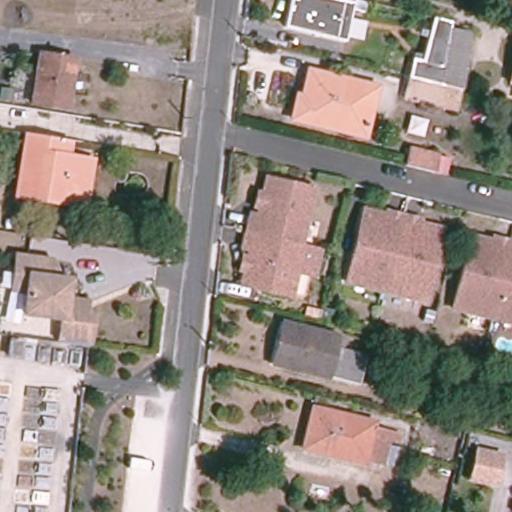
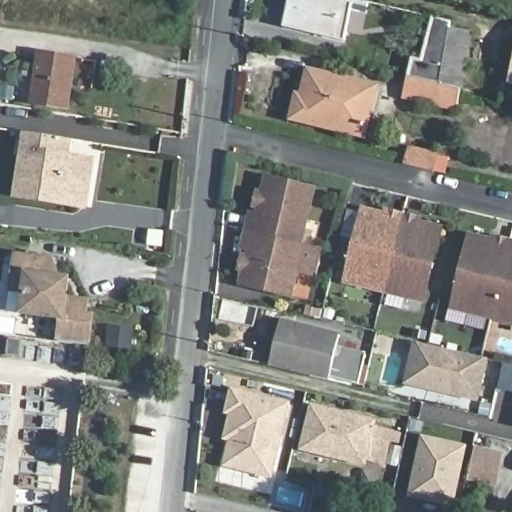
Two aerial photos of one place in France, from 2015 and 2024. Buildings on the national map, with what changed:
unchanged [(335,39),(281,26),(287,0),(339,0),(343,1),(355,4),(353,16),(340,13),(337,29),(349,32),(347,42),(335,39)]
unchanged [(462,89),(409,76),(413,58),(424,61),(435,17),(453,22),(452,29),(472,32),(462,89)]
unchanged [(40,52),(78,57),(70,110),(32,105),(40,52)]
unchanged [(363,85),(358,105),(371,108),(365,134),(296,117),(300,97),(305,99),(312,72),(363,85)]
unchanged [(457,108),(404,95),(409,76),(462,89),(457,108)]
unchanged [(36,136),(47,137),(69,141),(66,157),(92,161),(85,205),(18,195),(28,134),(36,136)]
unchanged [(411,149),(440,156),(436,172),(407,165),(411,149)]
unchanged [(253,214),(261,215),(263,207),(258,206),(262,192),(266,194),(270,177),(316,189),(303,243),(297,242),(249,230),(251,222),(253,214)]
unchanged [(381,290),(342,281),(360,209),(377,213),(382,215),(383,211),(399,215),(387,265),(381,290)]
unchanged [(420,300),(381,290),(387,265),(399,215),(416,219),(415,222),(420,224),(437,228),(420,300)]
unchanged [(249,230),(297,242),(303,243),(320,249),(313,275),(292,270),(284,296),(229,281),(242,228),(249,230)]
unchanged [(449,302),(467,231),(484,235),(489,236),(490,232),(506,237),(488,312),(449,302)]
unchanged [(488,312),(506,237),(512,238),(512,317),(488,312)]
unchanged [(19,312),(22,291),(24,275),(10,272),(13,255),(49,260),(55,278),(66,280),(64,297),(71,298),(78,313),(83,314),(90,315),(87,345),(55,341),(58,318),(19,312)]
unchanged [(277,322),(337,336),(334,346),(364,353),(357,385),(267,363),(277,322)]
new [(405,384),(415,342),(488,358),(478,402),(405,384)]
new [(223,466),(228,442),(222,441),(229,413),(224,412),(231,387),(290,402),(272,478),(223,466)]
unchanged [(295,402),(355,417),(354,421),(382,428),(380,436),(371,434),(365,458),(346,454),(345,457),(285,442),(295,402)]
unchanged [(371,439),(385,442),(380,462),(367,458),(371,439)]
new [(425,439),(466,448),(453,505),(412,496),(425,439)]
unchanged [(498,488),(468,482),(475,446),(506,452),(498,488)]

